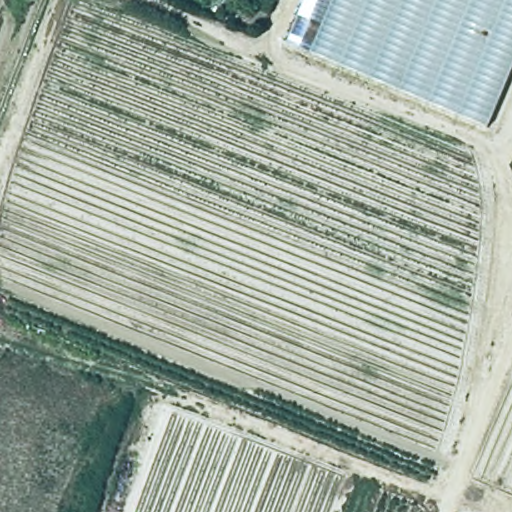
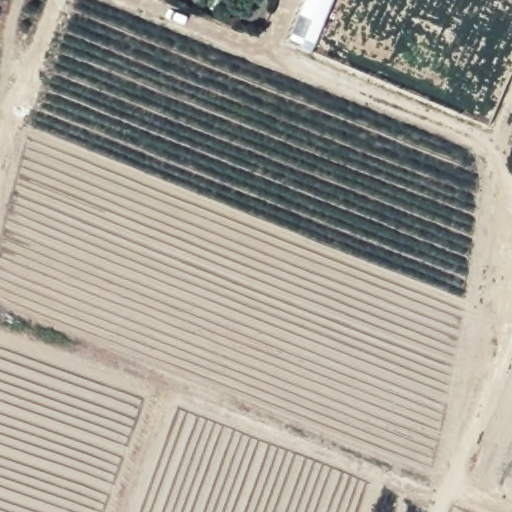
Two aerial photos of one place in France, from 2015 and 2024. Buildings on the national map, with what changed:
new [(334,0),(312,54),(287,42),(304,0),(334,0)]
demolished [(512,0),(512,63),(487,124),(305,46),(324,0),(512,0)]

